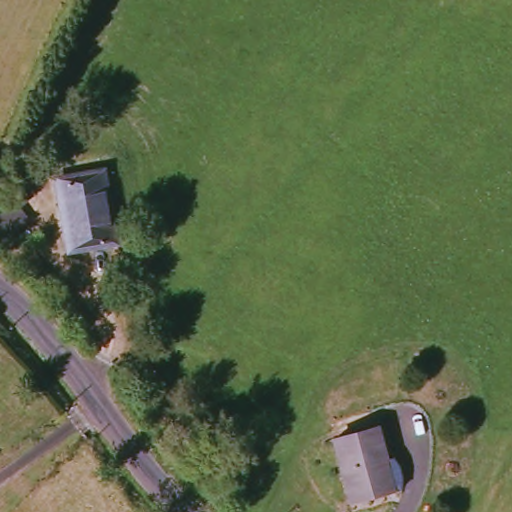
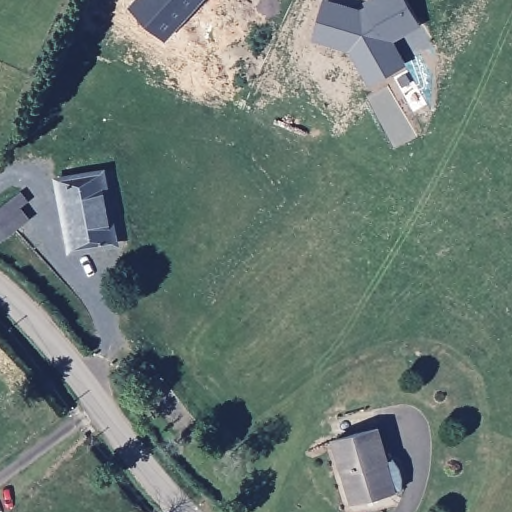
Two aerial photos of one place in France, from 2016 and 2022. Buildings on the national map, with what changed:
new [(142,0),(202,0),(167,39),(134,9),(142,0)]
new [(327,5),(357,14),(355,19),(364,21),(375,15),(370,6),(380,0),(408,0),(422,25),(392,42),(405,66),(372,85),(354,51),(317,41),(327,5)]
unchanged [(116,246),(72,253),(59,182),(105,175),(116,246)]
unchanged [(5,239),(0,233),(0,210),(17,197),(25,191),(30,197),(22,204),(32,218),(5,239)]
unchanged [(390,491),(353,500),(337,438),(381,426),(390,459),(399,489),(390,491)]

